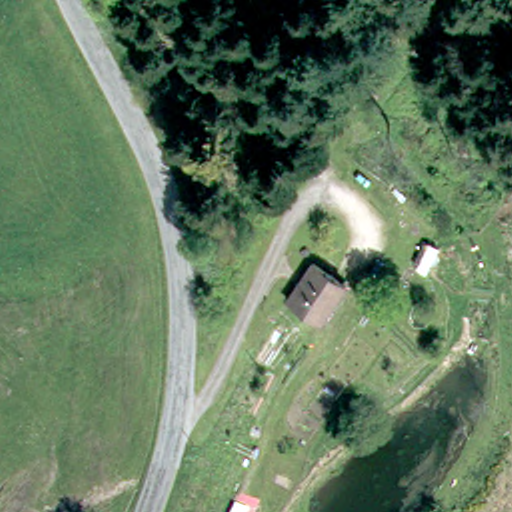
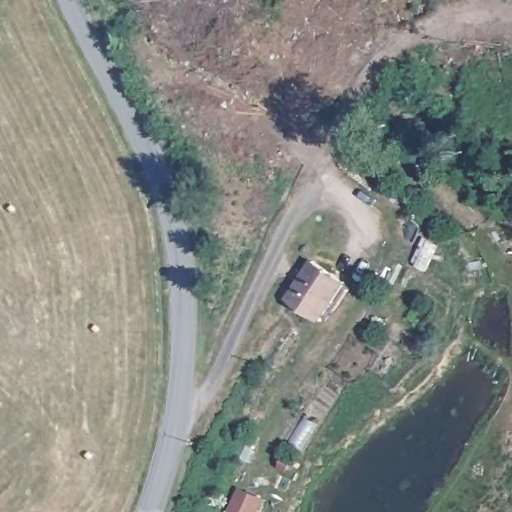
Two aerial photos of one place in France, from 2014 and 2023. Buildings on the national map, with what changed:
unchanged [(245,115),(241,126),(235,124),(239,113),(245,115)]
unchanged [(344,286),(322,320),(307,310),(288,297),(309,265),(332,278),(344,286)]

